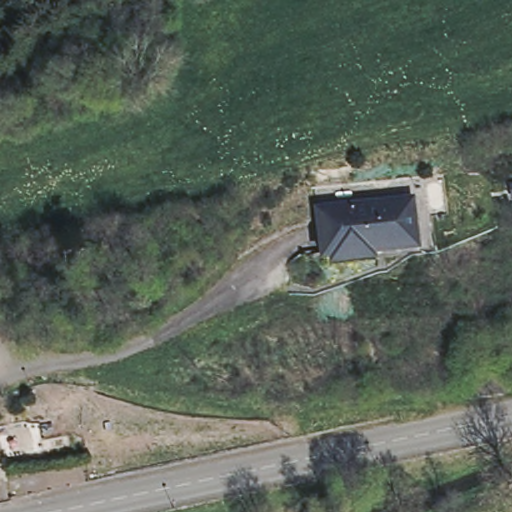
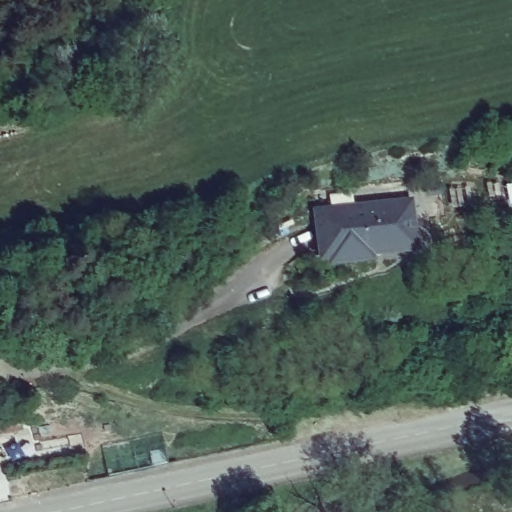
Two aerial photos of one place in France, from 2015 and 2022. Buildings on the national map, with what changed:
unchanged [(407,196),(412,240),(372,244),(372,251),(333,255),(332,247),(322,249),(317,205),(407,196)]

